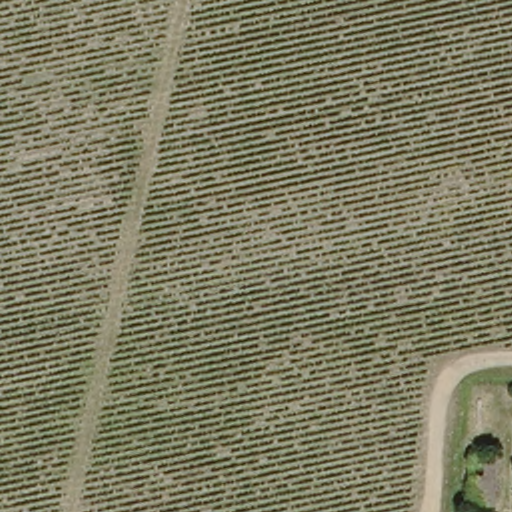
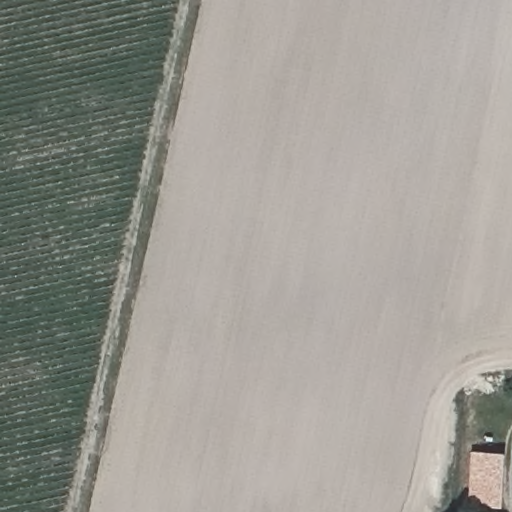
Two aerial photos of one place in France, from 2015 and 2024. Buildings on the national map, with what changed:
demolished [(499,456),(496,506),(472,505),(475,455),(499,456)]

